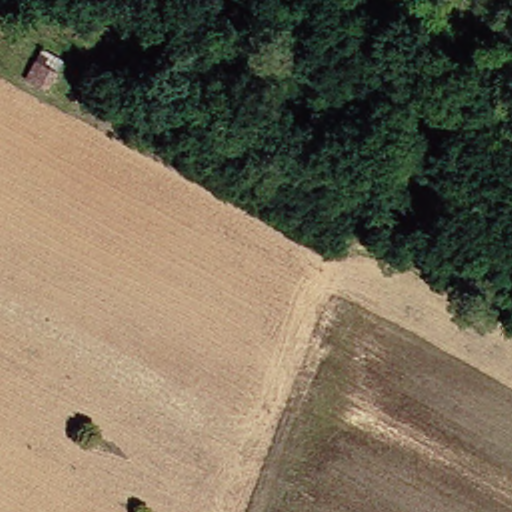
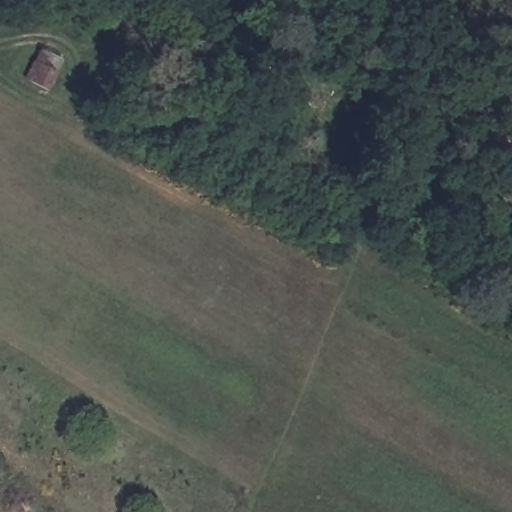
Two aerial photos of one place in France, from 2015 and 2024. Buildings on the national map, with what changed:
unchanged [(95,107),(86,122),(64,111),(72,95),(95,107)]

